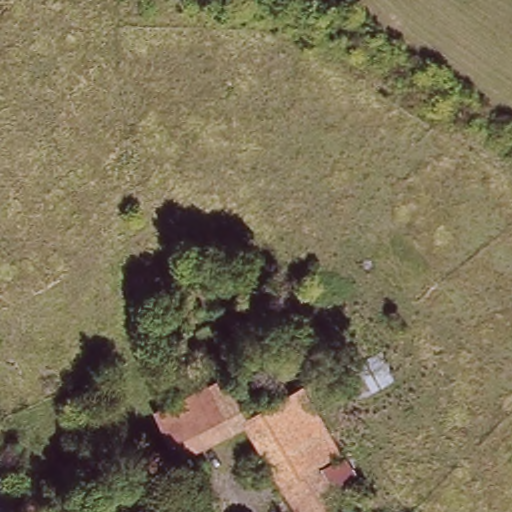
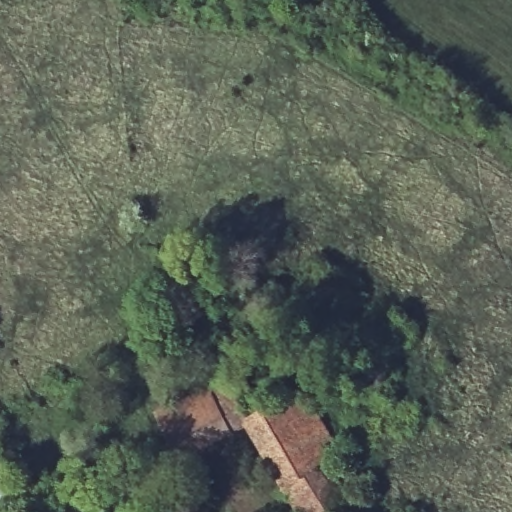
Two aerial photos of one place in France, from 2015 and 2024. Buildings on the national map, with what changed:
unchanged [(336,507),(328,512),(293,512),(276,489),(237,423),(172,459),(149,416),(217,379),(222,385),(234,378),(254,411),(258,409),(251,396),(276,384),(283,394),(294,389),(348,486),(331,495),(336,507)]

